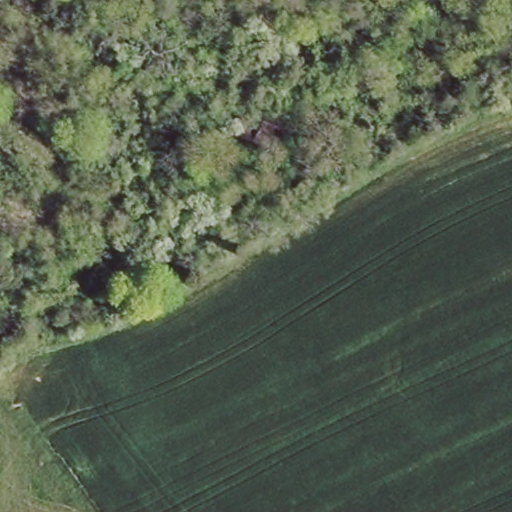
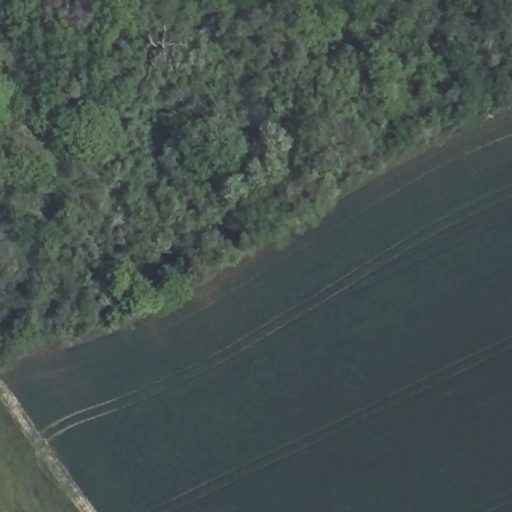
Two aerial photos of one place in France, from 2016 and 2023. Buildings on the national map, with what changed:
unchanged [(277,106),(264,148),(217,134),(230,92),(277,106)]

